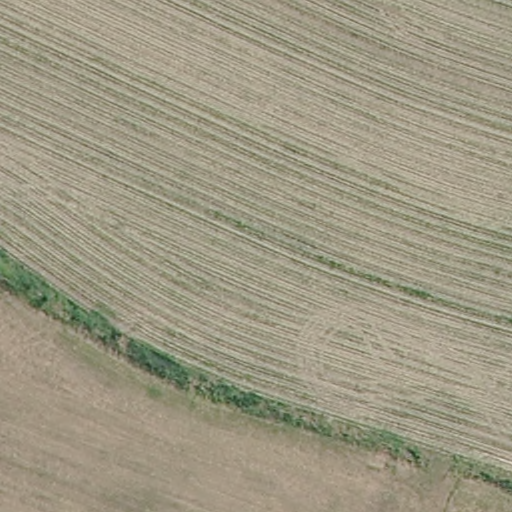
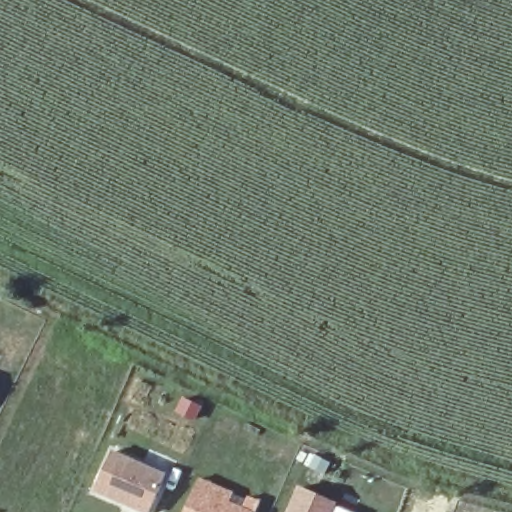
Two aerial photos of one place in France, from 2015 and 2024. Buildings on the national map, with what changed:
new [(114,452),(167,476),(152,512),(142,512),(97,492),(114,452)]
new [(197,476),(235,492),(231,499),(242,504),(246,495),(260,500),(255,512),(181,512),(197,476)]
new [(300,488),(336,504),(332,512),(289,512),(300,488)]

